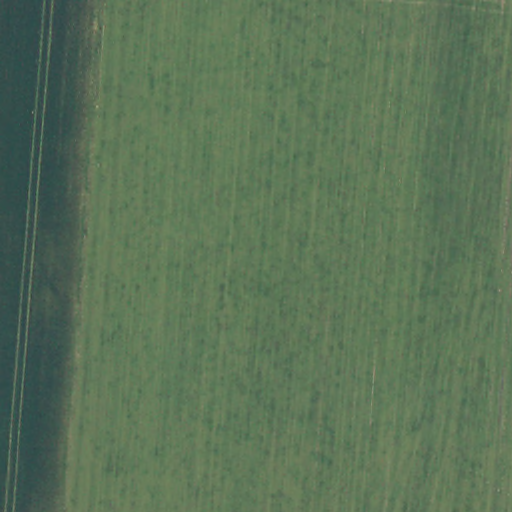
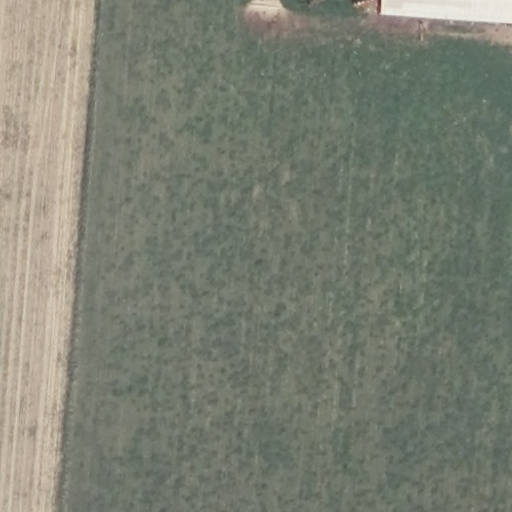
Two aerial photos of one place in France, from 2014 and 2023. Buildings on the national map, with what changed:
new [(382,14),(383,0),(512,0),(512,21),(382,14)]

